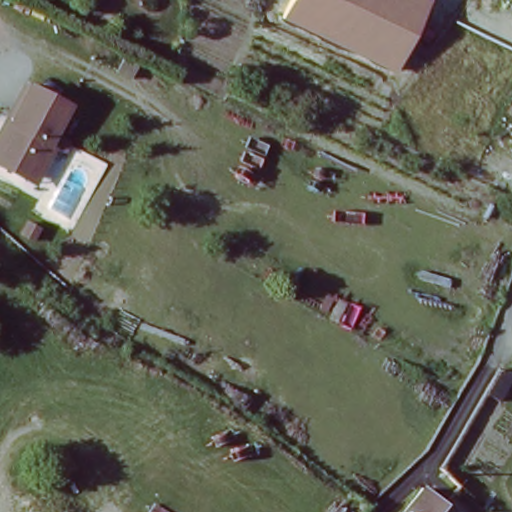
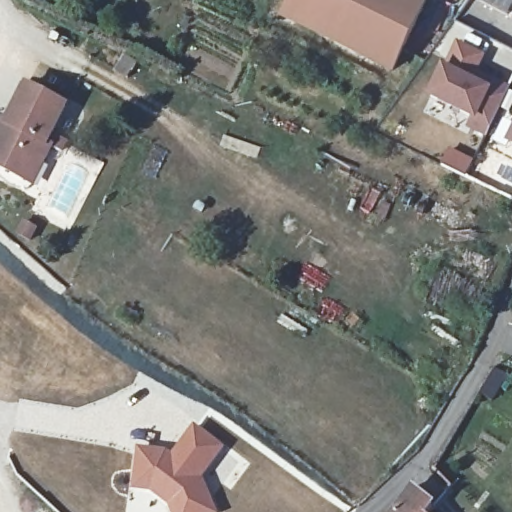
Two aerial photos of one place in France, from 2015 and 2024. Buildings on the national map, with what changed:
unchanged [(284,16),(291,0),(429,0),(395,72),(284,16)]
new [(470,81),(472,77),(475,73),(493,82),(510,90),(487,135),(471,127),(475,118),(432,96),(446,70),(470,81)]
unchanged [(28,181),(0,169),(0,140),(2,136),(22,89),(66,108),(50,145),(56,148),(47,168),(40,186),(28,181)]
unchanged [(512,145),(510,144),(512,139),(512,145)]
new [(167,451),(173,455),(196,425),(227,449),(205,479),(218,512),(170,512),(167,506),(150,492),(132,490),(137,447),(167,451)]
unchanged [(414,489),(433,505),(427,512),(395,512),(414,489)]

